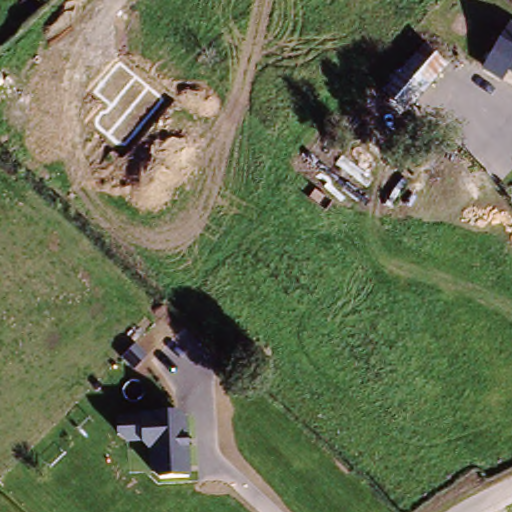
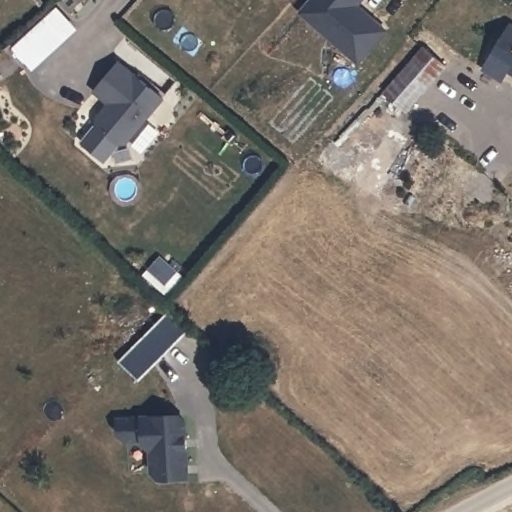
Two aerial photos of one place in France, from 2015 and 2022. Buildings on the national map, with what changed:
new [(354,10),(364,19),(365,17),(385,34),(360,63),(301,13),(313,0),(363,0),(354,10)]
unchanged [(512,26),(512,73),(507,82),(479,67),(500,29),(507,33),(511,26),(512,26)]
new [(405,116),(381,96),(425,45),(448,65),(405,116)]
new [(93,126),(93,120),(100,113),(105,112),(110,107),(91,91),(118,60),(162,99),(122,145),(116,146),(93,126)]
unchanged [(191,414),(192,481),(159,483),(156,448),(122,448),(121,417),(191,414)]

